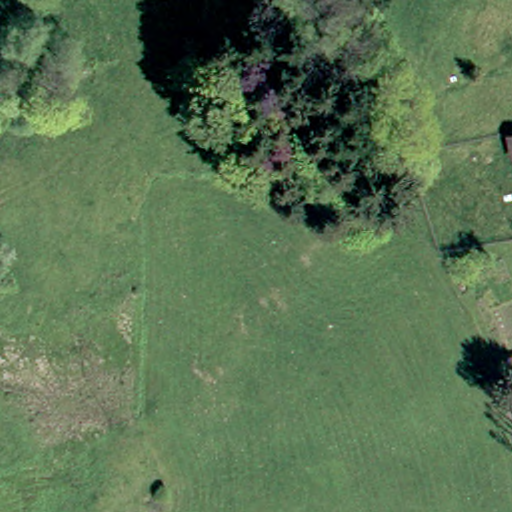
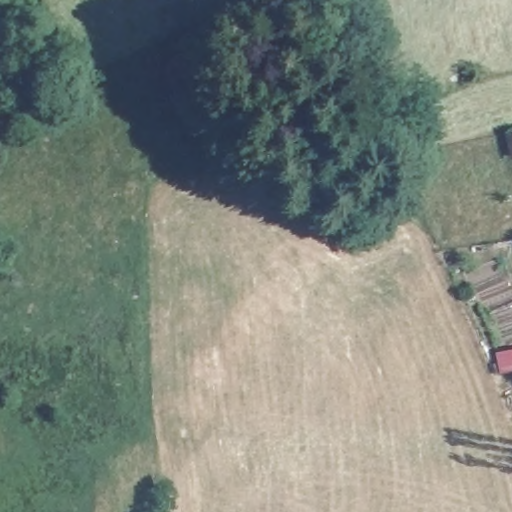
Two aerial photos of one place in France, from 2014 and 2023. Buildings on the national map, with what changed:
unchanged [(512,140),(512,143),(511,140),(512,140)]
unchanged [(511,360),(512,360),(512,365),(511,360)]

